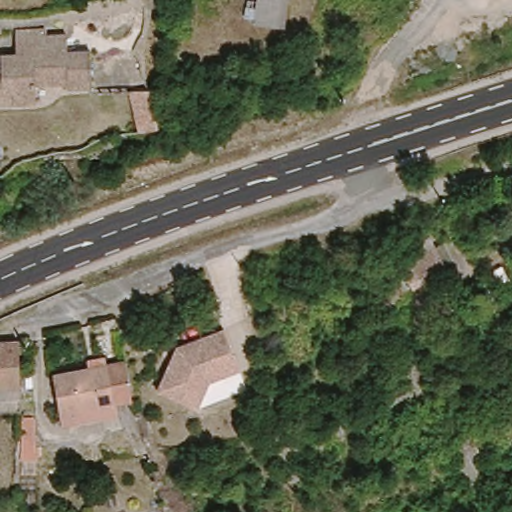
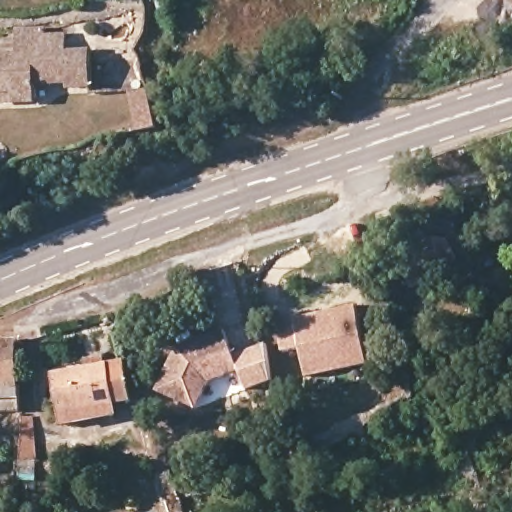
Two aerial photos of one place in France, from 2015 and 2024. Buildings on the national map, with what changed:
unchanged [(259,0),(287,0),(283,27),(256,24),(259,0)]
unchanged [(0,90),(0,67),(4,66),(5,54),(18,53),(18,36),(18,27),(50,28),(50,33),(72,34),(72,54),(95,55),(95,90),(70,90),(70,83),(39,83),(40,100),(17,101),(0,101),(0,90)]
unchanged [(444,269),(422,275),(420,271),(410,274),(404,255),(435,245),(444,269)]
new [(369,365),(307,378),(302,349),(283,352),(278,319),(354,303),(369,365)]
unchanged [(177,344),(225,329),(232,355),(237,372),(205,380),(193,408),(152,388),(177,344)]
unchanged [(17,342),(18,372),(17,401),(0,400),(0,331),(17,331),(17,342)]
new [(265,342),(265,345),(272,377),(245,388),(237,372),(232,355),(265,342)]
unchanged [(62,413),(58,369),(112,369),(116,407),(62,413)]

